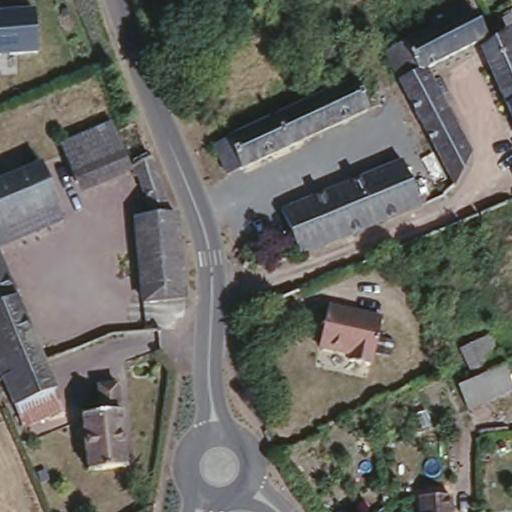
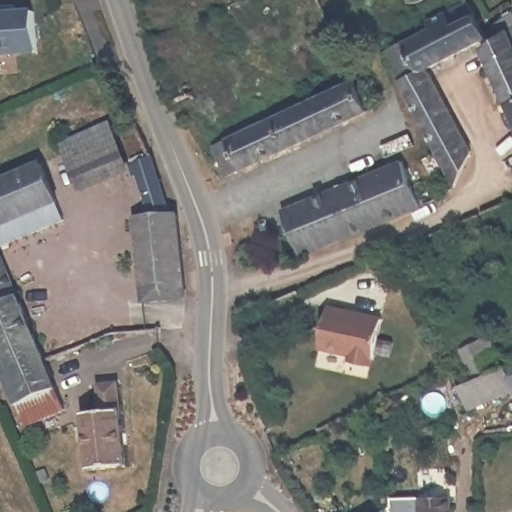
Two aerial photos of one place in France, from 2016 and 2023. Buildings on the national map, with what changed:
unchanged [(349,2),(348,0),(353,0),(349,2)]
unchanged [(414,69),(402,41),(431,26),(429,20),(446,12),(463,3),(470,16),(481,40),(423,65),(414,69)]
unchanged [(495,38),(487,22),(510,11),(512,15),(512,99),(507,101),(482,44),(495,38)]
unchanged [(0,60),(0,16),(34,14),(36,58),(0,60)]
unchanged [(398,76),(385,49),(402,41),(414,69),(423,65),(465,154),(447,183),(398,76)]
unchanged [(368,90),(375,104),(283,147),(231,172),(217,140),(221,138),(361,73),(369,70),(376,86),(368,90)]
unchanged [(507,101),(512,99),(512,114),(507,101)]
unchanged [(113,124),(133,168),(81,186),(63,142),(113,124)]
unchanged [(0,220),(0,176),(44,157),(54,152),(71,192),(0,220)]
unchanged [(280,206),(335,181),(397,152),(413,191),(421,187),(423,195),(350,227),(313,244),(300,250),(280,206)]
unchanged [(181,213),(190,302),(145,304),(137,215),(154,214),(139,161),(158,154),(181,213)]
unchanged [(78,207),(0,238),(0,220),(71,192),(78,207)]
unchanged [(0,369),(0,256),(40,355),(0,369)]
unchanged [(382,311),(376,353),(371,353),(370,360),(349,357),(350,349),(319,343),(327,303),(382,311)]
unchanged [(512,374),(512,391),(475,406),(464,383),(478,377),(466,348),(485,340),(495,336),(507,362),(497,366),(494,367),(495,371),(509,366),(512,374)]
unchanged [(9,398),(0,377),(0,369),(40,355),(51,382),(56,396),(15,413),(9,398)]
unchanged [(440,421),(423,383),(454,369),(464,383),(475,406),(440,421)]
unchanged [(103,408),(100,383),(118,379),(129,459),(93,464),(86,410),(103,408)]
unchanged [(447,492),(448,512),(417,512),(417,494),(447,492)]

